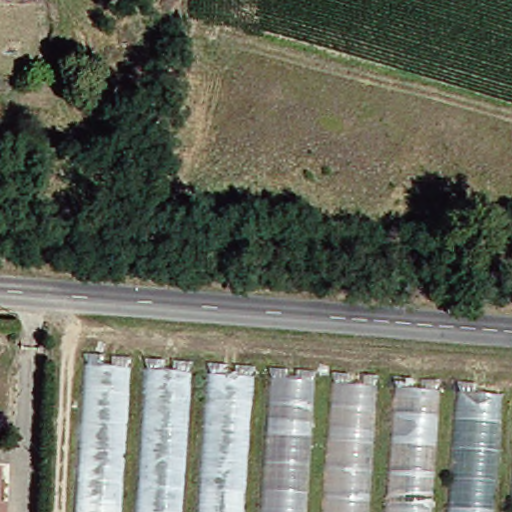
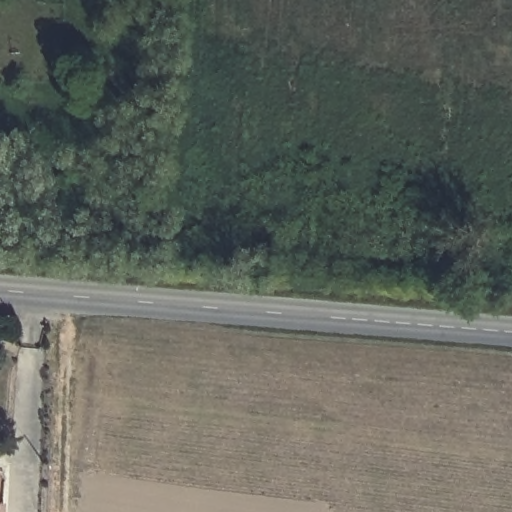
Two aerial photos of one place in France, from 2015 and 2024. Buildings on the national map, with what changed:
demolished [(113,512),(66,512),(76,353),(123,354),(113,512)]
demolished [(175,512),(127,512),(137,357),(184,359),(175,512)]
demolished [(236,512),(190,512),(200,361),(244,363),(236,512)]
demolished [(298,512),(252,512),(262,365),(307,368),(298,512)]
demolished [(360,512),(317,512),(326,372),(368,372),(360,512)]
demolished [(426,512),(377,512),(386,375),(433,378),(426,512)]
demolished [(485,512),(441,512),(450,379),(492,381),(485,512)]
demolished [(509,384),(512,384),(512,512),(501,512),(509,384)]

